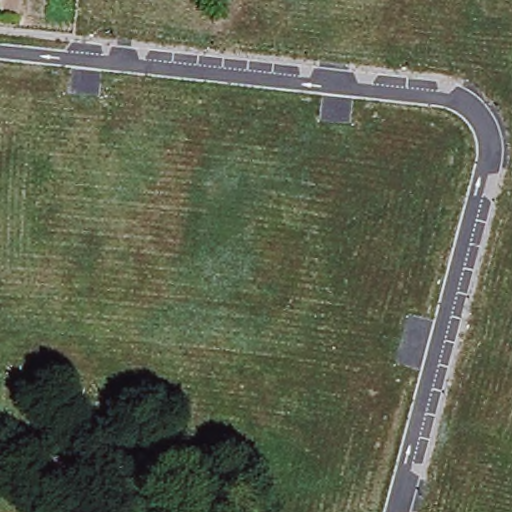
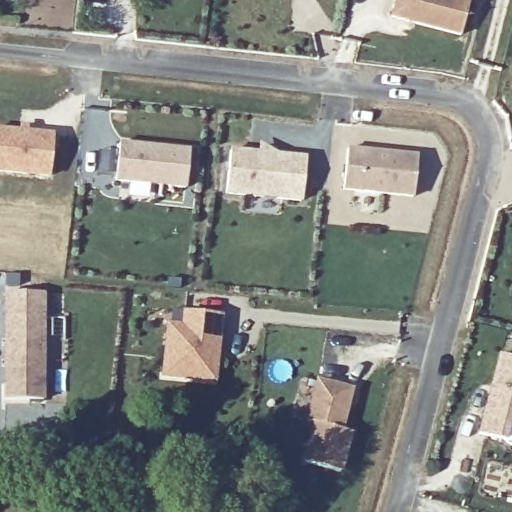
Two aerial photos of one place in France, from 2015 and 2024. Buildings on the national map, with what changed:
new [(461,38),(389,20),(394,0),(470,0),(461,38)]
new [(49,175),(0,171),(0,131),(51,135),(49,175)]
new [(121,139),(191,148),(189,167),(187,185),(117,177),(121,139)]
new [(417,156),(412,199),(343,193),(348,148),(417,156)]
new [(301,201),(280,199),(278,215),(246,210),(247,194),(226,192),(230,151),(305,159),(301,201)]
new [(6,293),(43,292),(43,399),(5,399),(6,293)]
new [(169,327),(183,329),(185,314),(220,318),(212,385),(162,379),(169,327)]
new [(499,355),(512,359),(512,427),(508,425),(503,440),(477,433),(499,355)]
new [(354,389),(344,430),(354,432),(343,471),(304,462),(313,424),(305,421),(315,379),(354,389)]

